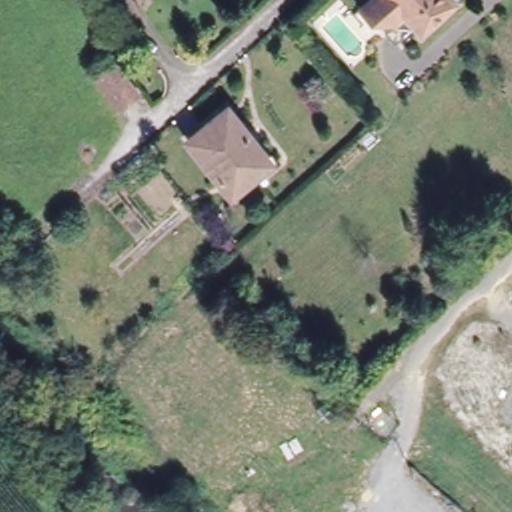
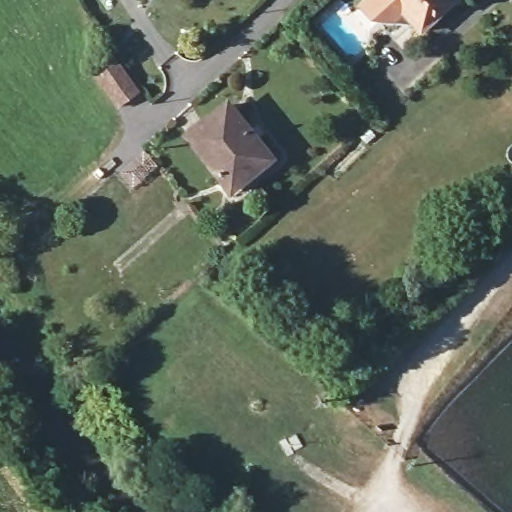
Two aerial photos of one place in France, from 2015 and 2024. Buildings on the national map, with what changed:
unchanged [(462,1),(431,30),(391,31),(369,9),(379,0),(461,0),(462,1)]
unchanged [(121,103),(97,72),(113,60),(137,90),(121,103)]
unchanged [(227,106),(271,152),(240,183),(196,136),(227,106)]

